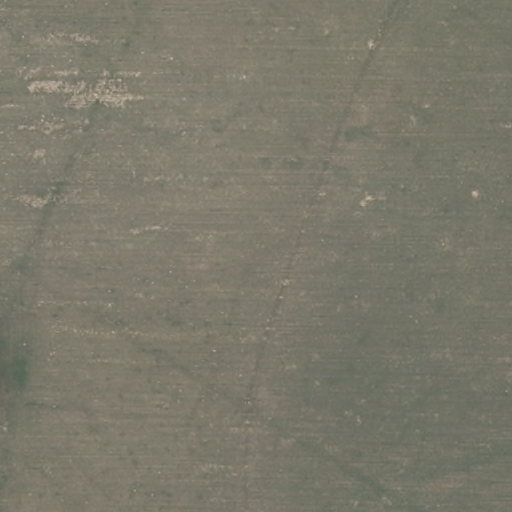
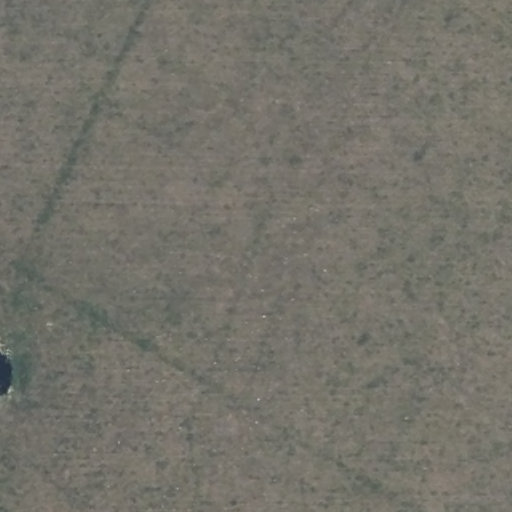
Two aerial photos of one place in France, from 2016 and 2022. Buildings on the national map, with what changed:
unchanged [(296,492),(296,507),(283,507),(283,492),(296,492)]

